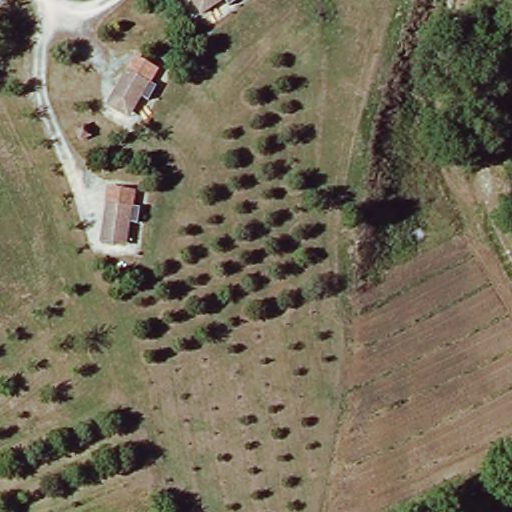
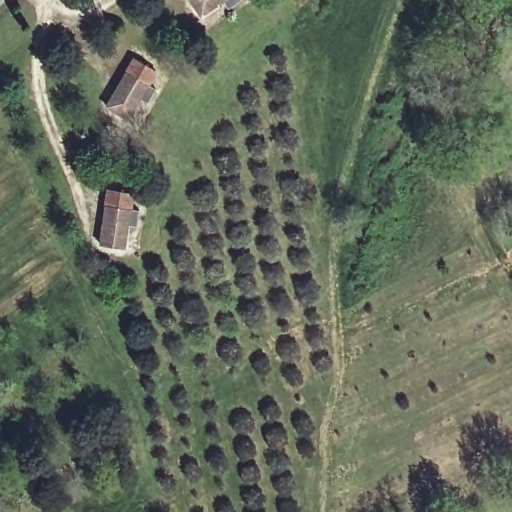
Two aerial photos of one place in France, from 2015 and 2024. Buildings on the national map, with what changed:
unchanged [(233,0),(205,18),(193,0),(233,0)]
unchanged [(130,121),(110,109),(137,65),(155,76),(130,121)]
unchanged [(101,247),(107,210),(112,191),(133,195),(127,248),(117,247),(101,247)]

